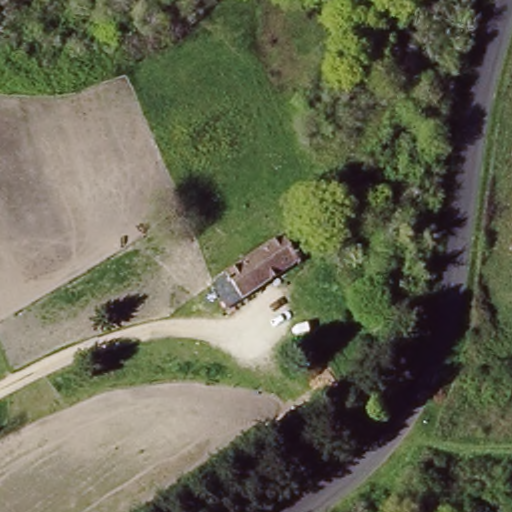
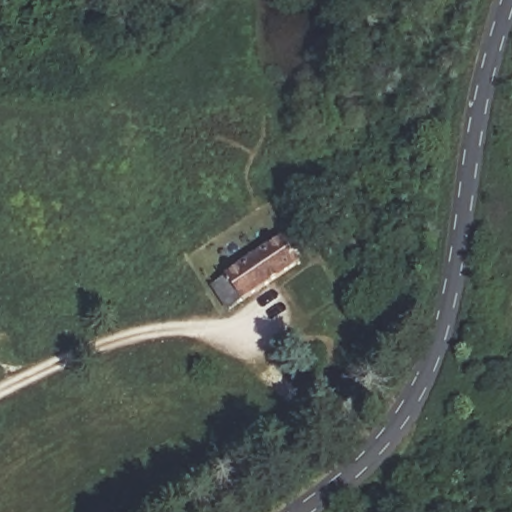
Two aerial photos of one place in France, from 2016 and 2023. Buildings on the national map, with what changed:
unchanged [(277,231),(296,267),(235,302),(229,291),(216,299),(208,281),(277,231)]

